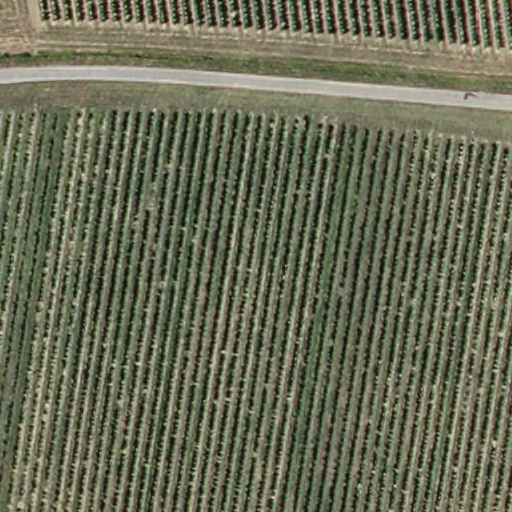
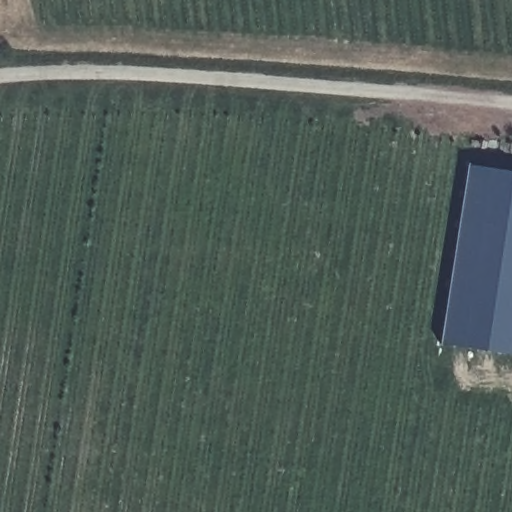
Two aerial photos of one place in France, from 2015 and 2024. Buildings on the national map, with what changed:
new [(512,172),(512,355),(445,345),(473,166),(512,172)]

